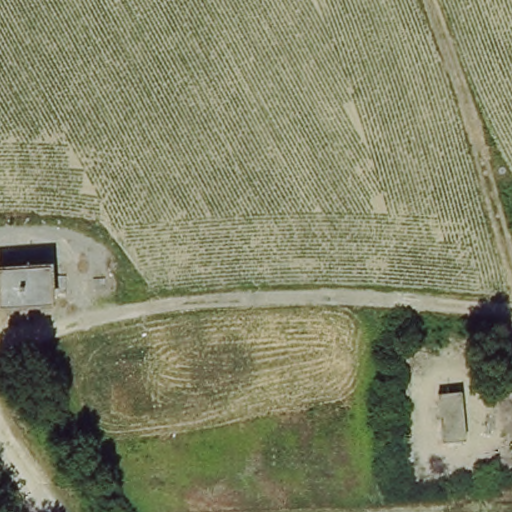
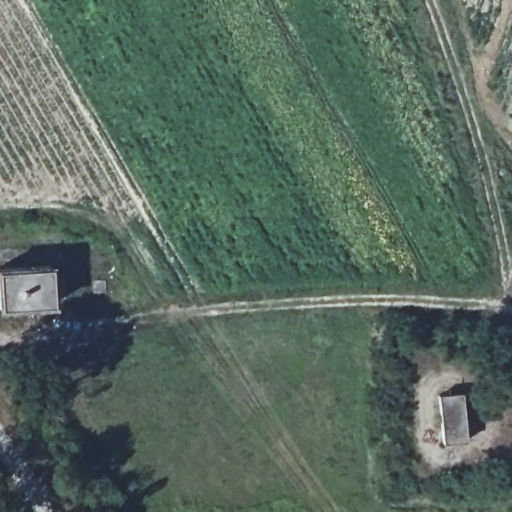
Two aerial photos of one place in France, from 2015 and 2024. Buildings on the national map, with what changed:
unchanged [(50,266),(52,305),(0,308),(0,269),(50,266)]
unchanged [(460,393),(465,440),(442,442),(437,395),(460,393)]

